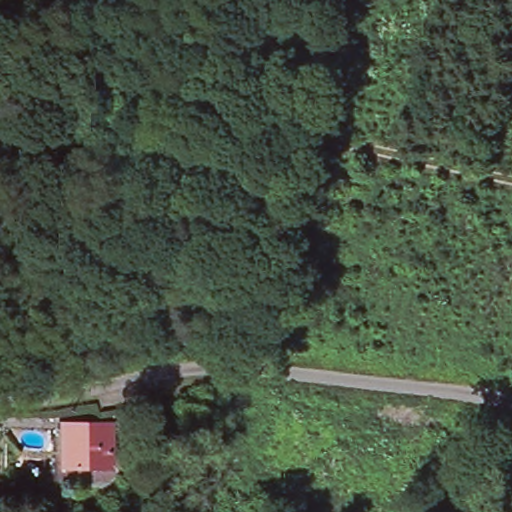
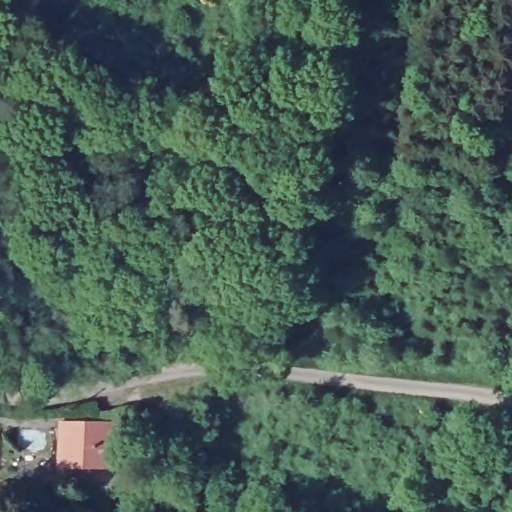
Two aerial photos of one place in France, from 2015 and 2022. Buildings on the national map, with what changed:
unchanged [(99,470),(60,469),(60,452),(60,423),(73,423),(99,424),(110,424),(110,470),(99,470)]

